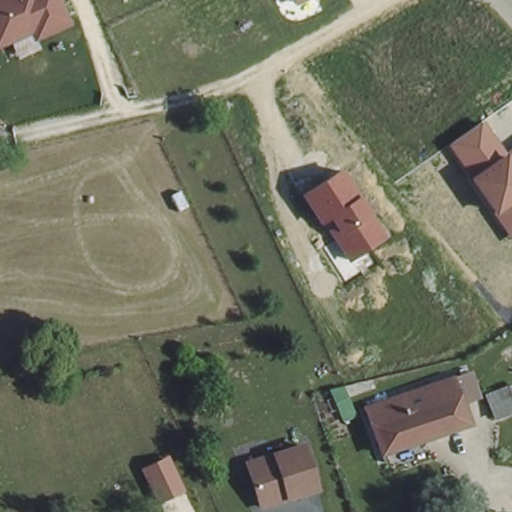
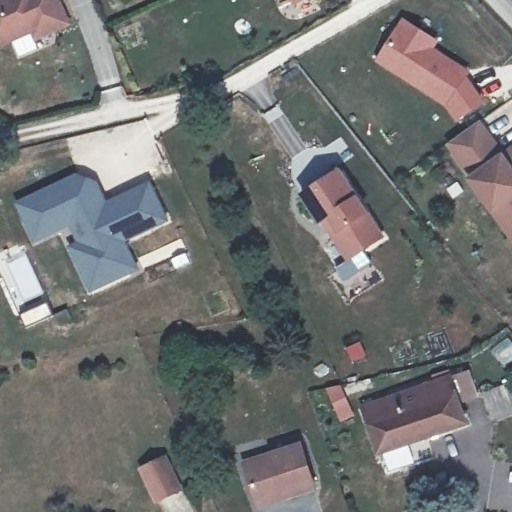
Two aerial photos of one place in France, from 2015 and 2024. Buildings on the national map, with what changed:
unchanged [(71,27),(34,42),(30,33),(0,46),(0,0),(60,0),(71,27)]
unchanged [(294,4),(292,0),(303,0),(294,4)]
new [(455,121),(445,106),(375,62),(403,18),(439,41),(434,48),(470,72),(467,77),(485,101),(455,121)]
unchanged [(512,147),(512,242),(492,215),(469,178),(445,147),(482,121),(504,152),(512,147)]
unchanged [(340,169),(383,239),(346,262),(321,225),(319,226),(301,195),(340,169)]
new [(127,241),(140,270),(89,294),(66,245),(76,241),(70,227),(33,243),(14,200),(76,172),(97,179),(107,199),(150,182),(170,222),(127,241)]
unchanged [(359,410),(447,386),(459,382),(464,396),(452,400),(460,430),(374,457),(359,410)]
unchanged [(505,383),(512,400),(512,407),(490,416),(482,392),(505,383)]
unchanged [(243,460),(300,446),(312,490),(253,504),(243,460)]
new [(165,459),(178,491),(155,500),(142,468),(165,459)]

